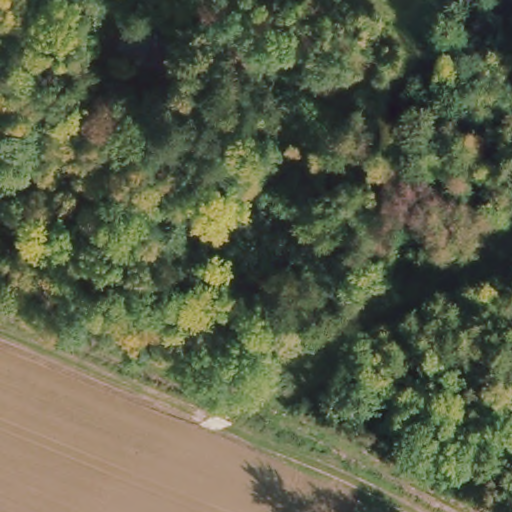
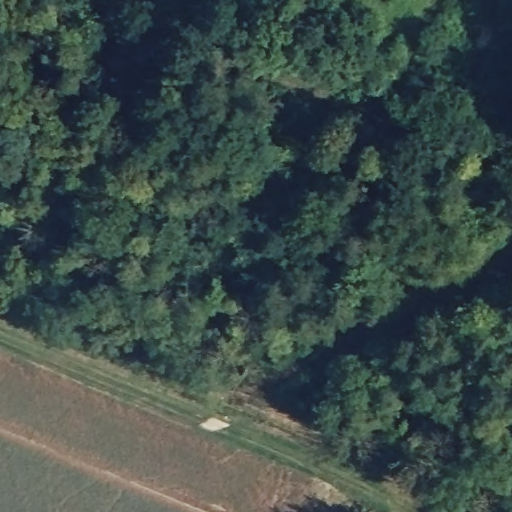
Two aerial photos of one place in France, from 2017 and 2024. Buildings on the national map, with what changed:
unchanged [(149,31),(138,57),(122,50),(132,23),(149,31)]

